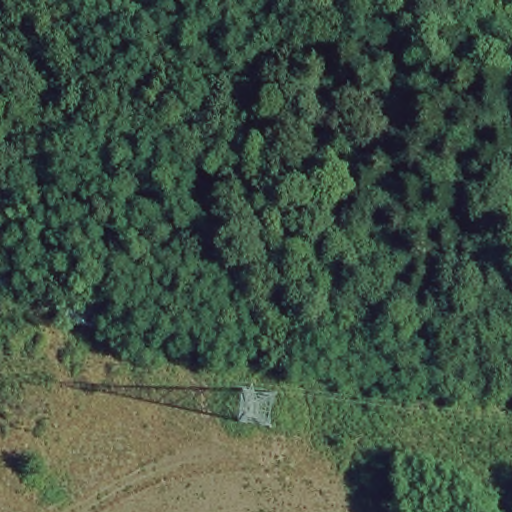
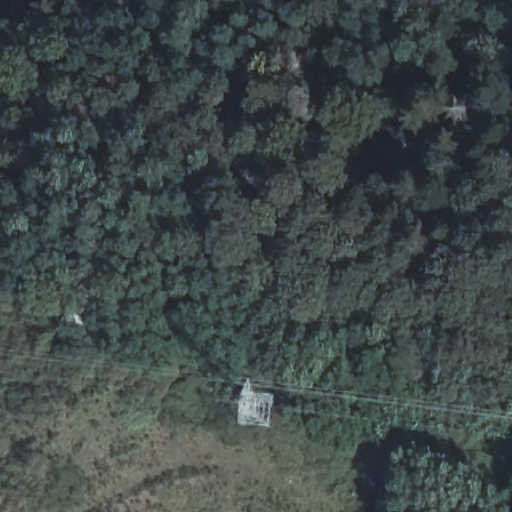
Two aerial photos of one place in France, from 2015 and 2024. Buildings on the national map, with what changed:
unchanged [(74,290),(108,298),(100,321),(70,318),(74,290)]

